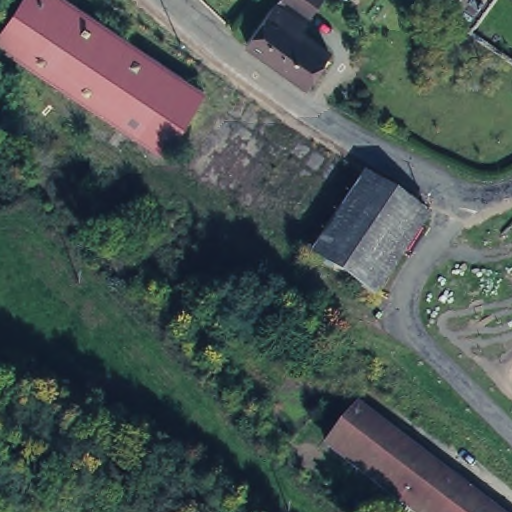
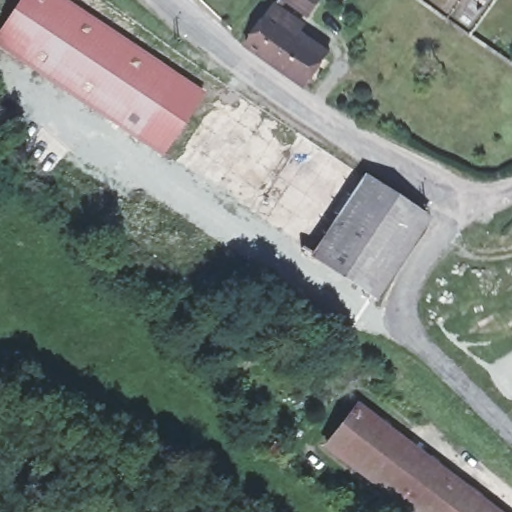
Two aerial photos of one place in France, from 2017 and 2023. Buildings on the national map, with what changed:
unchanged [(167,150),(0,39),(0,35),(23,0),(75,0),(207,87),(167,150)]
unchanged [(312,22),(284,2),(285,0),(324,0),(327,2),(312,22)]
unchanged [(271,16),(277,9),(307,29),(300,37),(330,57),(307,91),(248,49),(248,47),(271,16)]
unchanged [(428,212),(376,292),(312,250),(365,169),(428,212)]
unchanged [(328,440),(359,401),(504,512),(422,512),(328,440)]

